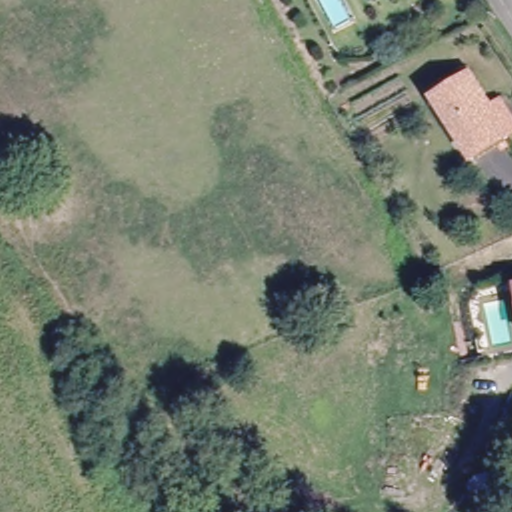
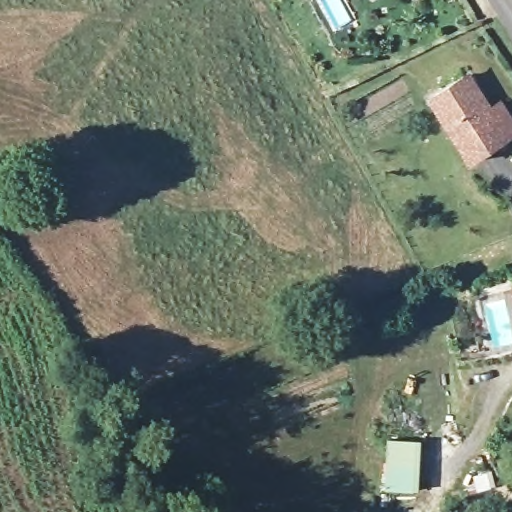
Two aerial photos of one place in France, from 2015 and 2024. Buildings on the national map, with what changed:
unchanged [(472,164),(467,157),(427,94),(464,70),(490,112),(501,105),(512,123),(512,136),(507,139),(508,141),(472,164)]
new [(386,437),(422,441),(418,495),(381,492),(386,437)]

